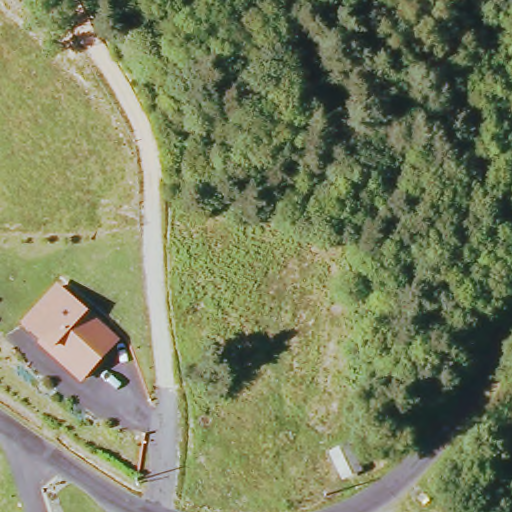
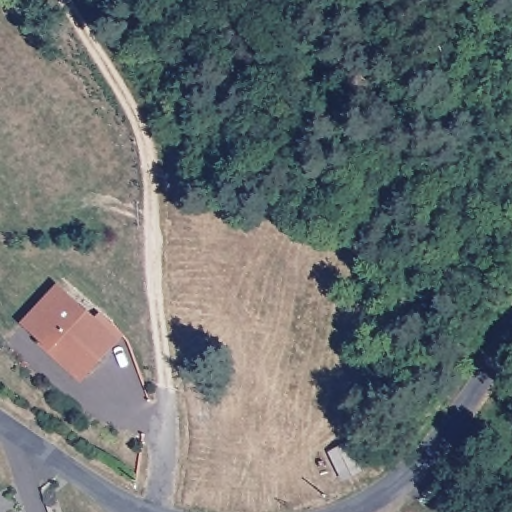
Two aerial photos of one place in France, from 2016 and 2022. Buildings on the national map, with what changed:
unchanged [(58,285),(123,342),(82,386),(22,322),(58,285)]
unchanged [(351,448),(361,474),(342,482),(332,456),(351,448)]

